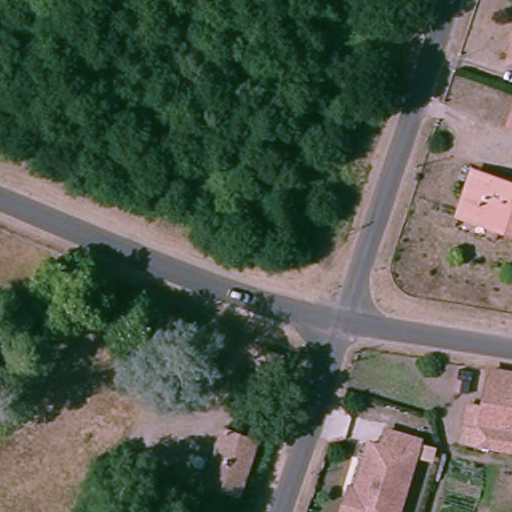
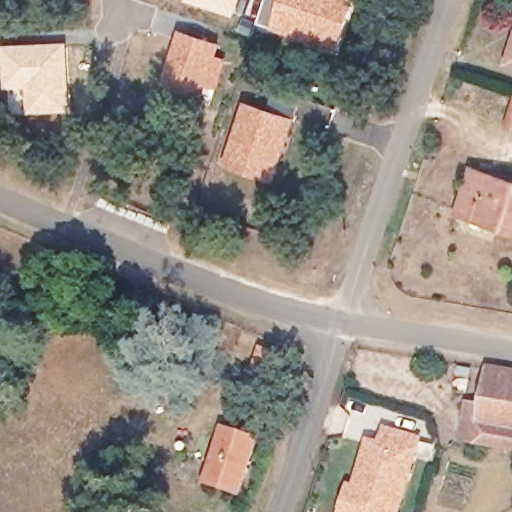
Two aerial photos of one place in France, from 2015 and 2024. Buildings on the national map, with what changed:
new [(234,17),(184,0),(239,0),(234,17)]
new [(355,1),(337,52),(320,46),(322,38),(276,22),(273,30),(256,24),(264,0),(353,0),(355,1)]
new [(178,29),(220,43),(217,55),(227,60),(208,102),(160,82),(178,29)]
unchanged [(512,39),(512,63),(505,61),(512,39)]
new [(67,42),(71,111),(27,114),(25,87),(4,88),(2,45),(67,42)]
new [(292,120),(274,179),(228,165),(248,104),(292,120)]
unchanged [(474,170),(512,184),(512,234),(458,215),(474,170)]
unchanged [(284,360),(276,383),(253,376),(261,352),(284,360)]
unchanged [(487,371),(512,375),(512,451),(462,443),(463,427),(467,406),(482,408),(487,371)]
unchanged [(353,486),(370,441),(382,445),(387,429),(420,441),(395,512),(338,512),(348,484),(353,486)]
unchanged [(256,441),(237,497),(205,485),(225,430),(256,441)]

